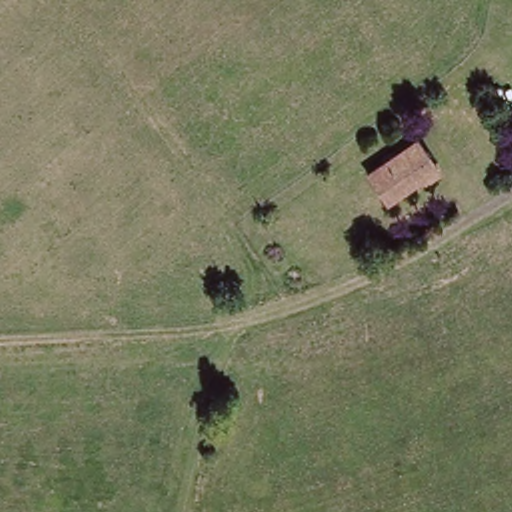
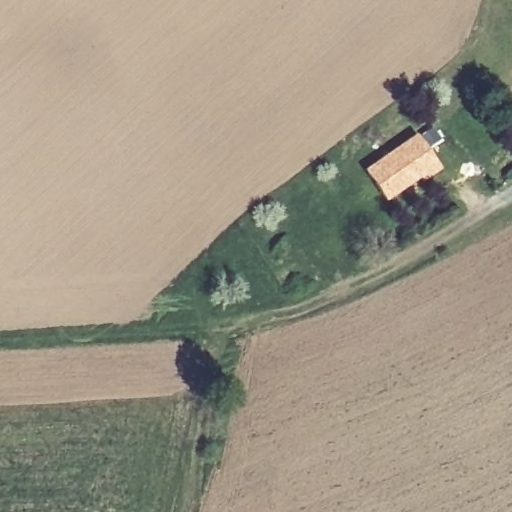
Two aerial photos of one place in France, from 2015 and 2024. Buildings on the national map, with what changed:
unchanged [(436,171),(420,185),(415,180),(388,197),(371,170),(412,140),(436,171)]

